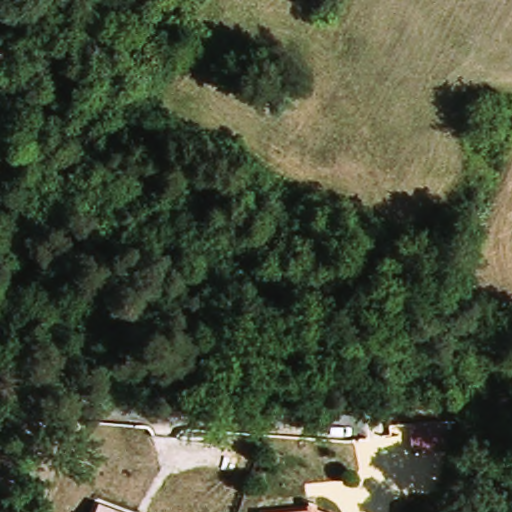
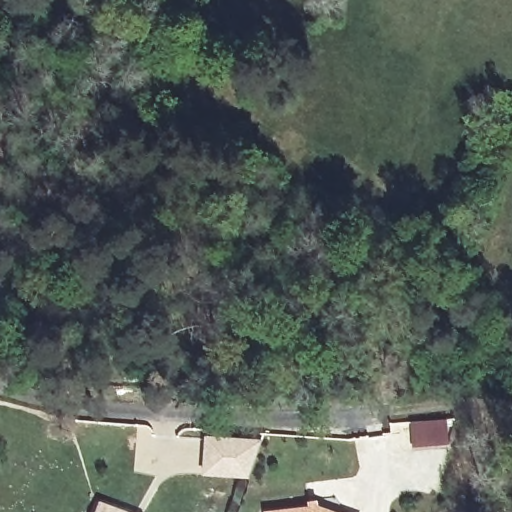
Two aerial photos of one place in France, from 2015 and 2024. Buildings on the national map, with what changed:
unchanged [(412,439),(386,440),(386,417),(412,418),(412,439)]
new [(263,441),(246,473),(245,480),(204,475),(206,434),(263,441)]
unchanged [(304,499),(311,497),(314,504),(363,507),(362,512),(289,512),(306,506),(304,499)]
unchanged [(101,512),(90,512),(90,511),(101,512)]

